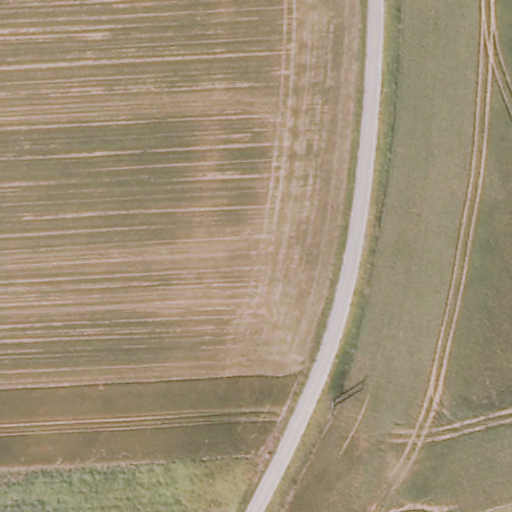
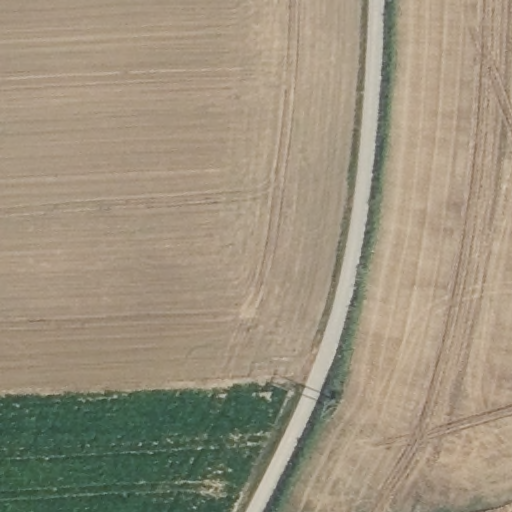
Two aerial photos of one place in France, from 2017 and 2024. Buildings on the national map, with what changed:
[]

